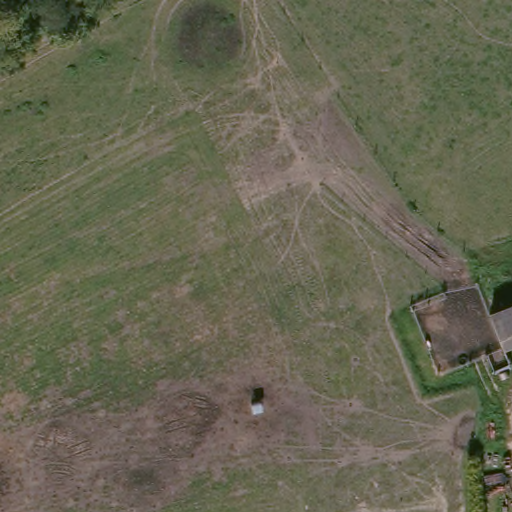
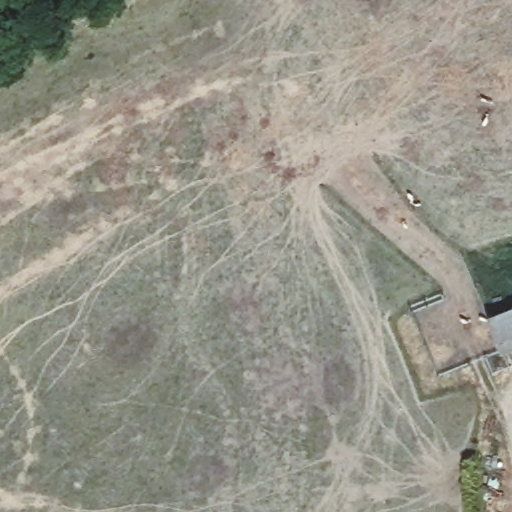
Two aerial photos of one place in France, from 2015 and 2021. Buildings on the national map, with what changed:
unchanged [(506,365),(483,299),(512,288),(512,362),(506,365)]

